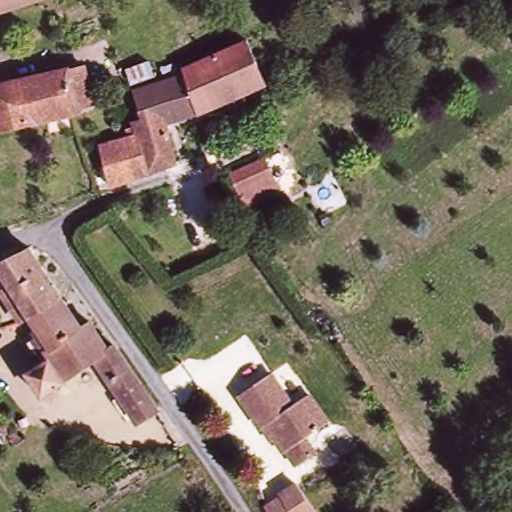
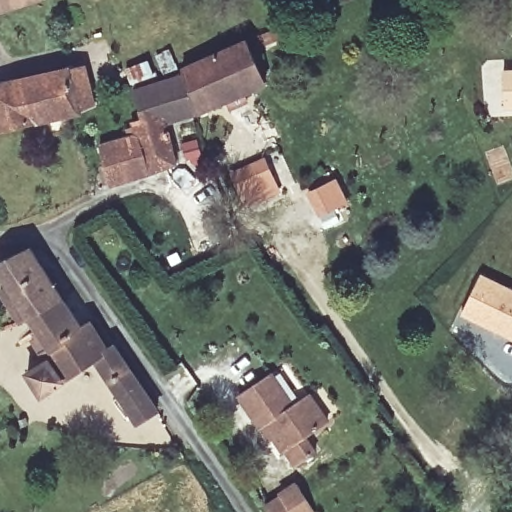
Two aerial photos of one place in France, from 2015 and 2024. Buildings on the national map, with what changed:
unchanged [(0,0),(41,0),(0,13),(0,0)]
unchanged [(183,172),(113,195),(101,152),(134,142),(131,127),(141,124),(135,97),(252,46),(269,91),(209,119),(173,133),(183,172)]
new [(502,68),(512,68),(512,109),(501,110),(502,68)]
unchanged [(101,114),(76,118),(0,132),(0,92),(91,72),(101,114)]
unchanged [(236,177),(265,163),(279,194),(249,207),(236,177)]
unchanged [(63,299),(34,319),(0,265),(34,248),(63,299)]
new [(512,291),(512,339),(462,314),(482,276),(512,291)]
unchanged [(63,299),(81,326),(86,322),(104,347),(110,342),(165,426),(142,441),(87,362),(44,397),(30,377),(49,363),(43,355),(53,347),(34,319),(63,299)]
unchanged [(245,398),(278,377),(299,408),(312,398),(332,427),(310,442),(319,455),(302,467),(293,455),(288,453),(270,428),(268,431),(245,398)]
unchanged [(283,496),(281,493),(299,483),(318,511),(316,512),(270,512),(267,507),(283,496)]

